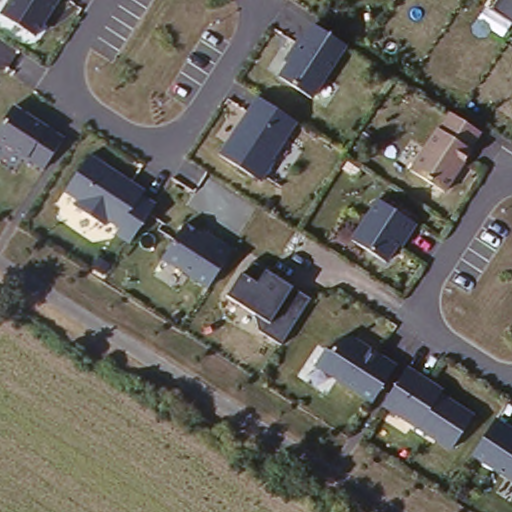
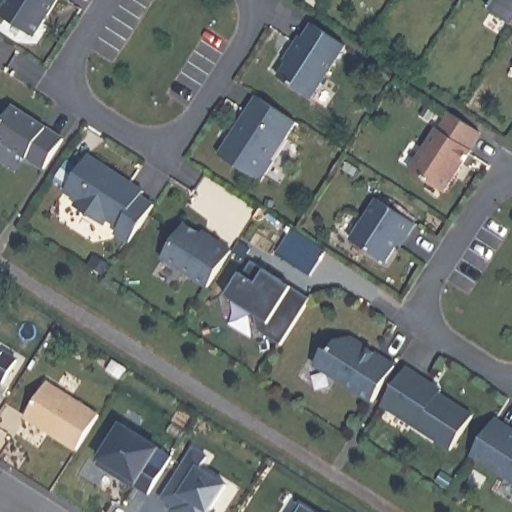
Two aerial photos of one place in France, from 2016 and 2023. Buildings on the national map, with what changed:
unchanged [(10,0),(60,0),(39,37),(1,16),(10,0)]
unchanged [(493,11),(499,0),(512,0),(512,23),(493,11)]
unchanged [(290,66),(285,61),(302,37),(306,39),(315,26),(347,48),(312,101),(280,80),(290,66)]
unchanged [(258,100),(296,123),(272,158),(275,162),(263,180),(222,156),(258,100)]
unchanged [(66,139),(46,169),(0,138),(0,132),(16,108),(66,139)]
unchanged [(449,111),(482,132),(445,192),(412,168),(449,111)]
unchanged [(91,155),(146,190),(144,194),(157,205),(132,245),(116,236),(122,230),(109,220),(105,225),(76,207),(80,199),(67,193),(91,155)]
unchanged [(378,202),(417,224),(405,246),(400,245),(388,261),(353,239),(378,202)]
unchanged [(187,226),(231,249),(211,288),(167,257),(187,226)]
unchanged [(282,347),(258,331),(257,315),(228,296),(242,274),(246,275),(256,259),(267,268),(296,287),(312,298),(282,347)]
unchanged [(338,341),(353,338),(397,362),(375,400),(320,365),(338,341)]
new [(0,344),(20,357),(6,380),(0,376),(0,344)]
unchanged [(407,369),(441,389),(437,394),(475,417),(455,448),(387,403),(407,369)]
new [(47,381),(99,413),(77,447),(26,415),(47,381)]
unchanged [(500,419),(512,427),(512,481),(476,459),(500,419)]
new [(100,458),(124,420),(161,444),(174,454),(168,462),(151,488),(137,480),(137,482),(100,458)]
new [(202,465),(229,481),(212,507),(216,509),(214,512),(189,512),(190,510),(164,494),(195,444),(210,453),(202,465)]
new [(321,512),(295,512),(302,501),(321,512)]

